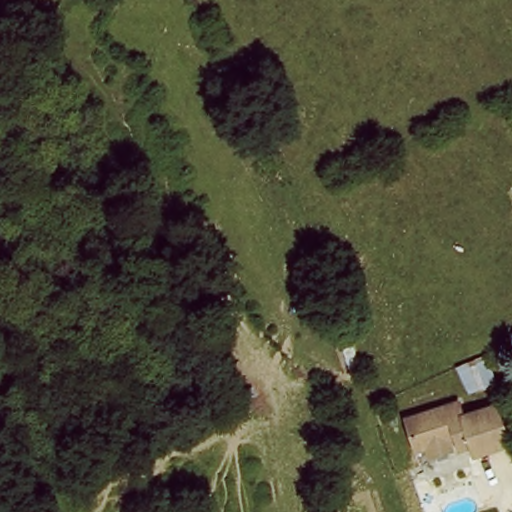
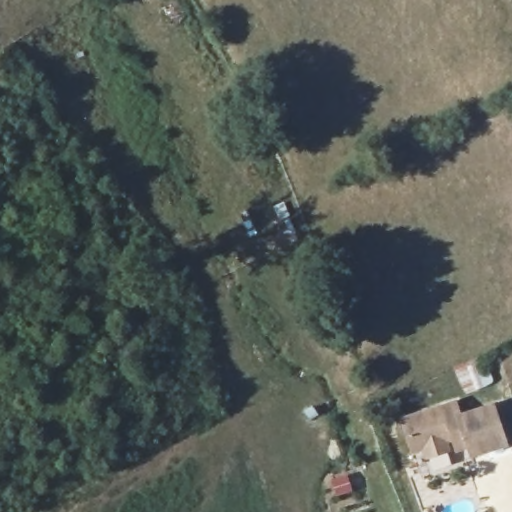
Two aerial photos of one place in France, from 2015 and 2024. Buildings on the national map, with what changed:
unchanged [(426,452),(418,455),(410,422),(460,407),(465,421),(494,413),(500,411),(505,432),(510,451),(507,452),(475,460),(475,457),(450,464),(448,457),(430,462),(426,452)]

